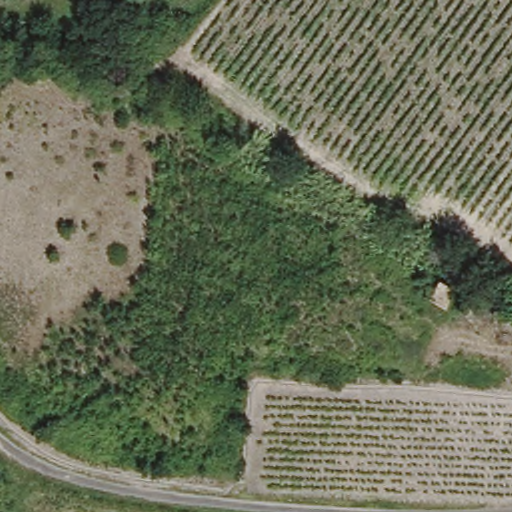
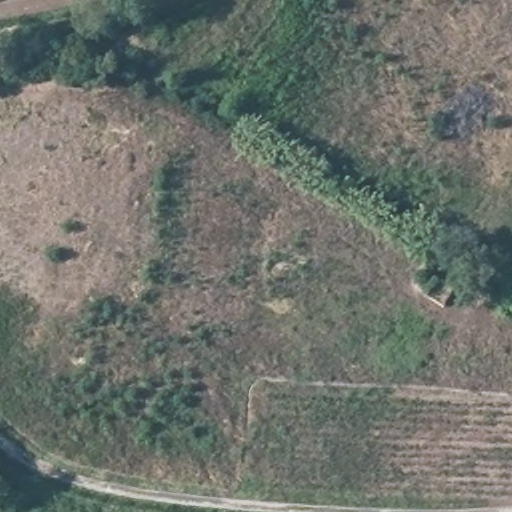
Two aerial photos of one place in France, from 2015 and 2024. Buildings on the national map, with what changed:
unchanged [(408,292),(423,273),(439,284),(457,295),(442,315),(425,303),(408,292)]

